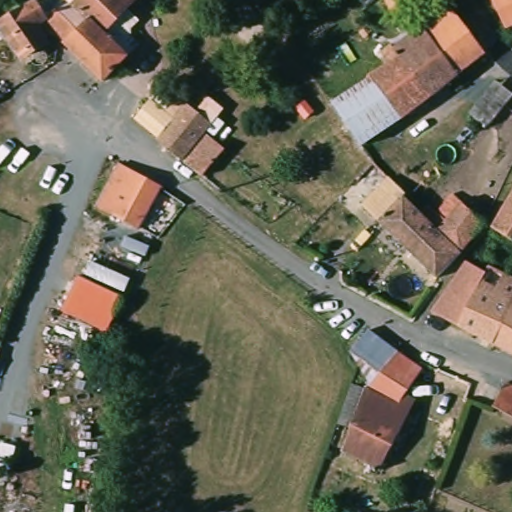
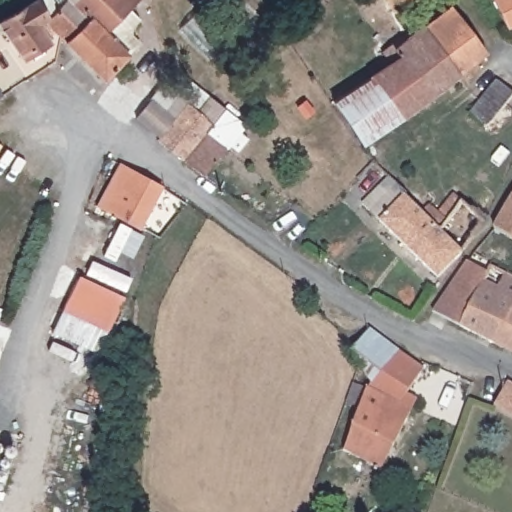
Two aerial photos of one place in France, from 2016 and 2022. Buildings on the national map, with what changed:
unchanged [(148,24),(140,31),(140,39),(148,48),(135,59),(108,85),(58,34),(54,30),(45,21),(49,17),(40,4),(47,0),(125,0),(134,10),(148,24)]
unchanged [(134,10),(125,0),(144,0),(134,10)]
unchanged [(379,0),(412,0),(395,15),(393,17),(378,1),(379,0)]
unchanged [(490,0),(512,0),(512,23),(505,27),(490,0)]
unchanged [(440,13),(451,3),(487,50),(459,72),(425,27),(424,25),(440,13)]
unchanged [(40,4),(49,17),(45,21),(54,30),(45,36),(54,48),(25,67),(0,28),(40,4)]
unchanged [(387,62),(379,52),(389,44),(393,50),(424,25),(425,27),(459,72),(404,115),(370,75),(387,62)]
unchanged [(370,75),(404,115),(361,148),(359,145),(336,114),(330,106),(370,75)]
unchanged [(1,100),(0,101),(0,99),(1,100)]
unchanged [(160,139),(136,121),(152,100),(176,119),(187,105),(213,126),(184,163),(168,150),(158,142),(160,139)]
unchanged [(228,152),(206,181),(187,166),(208,139),(209,137),(228,152)]
unchanged [(96,212),(121,166),(163,188),(138,235),(116,223),(96,212)]
unchanged [(356,206),(376,186),(395,204),(405,195),(421,212),(462,251),(434,279),(410,257),(356,206)]
unchanged [(512,189),(512,247),(486,231),(512,189)]
unchanged [(430,203),(438,210),(456,190),(483,223),(462,251),(421,212),(430,203)]
unchanged [(116,223),(138,235),(146,238),(116,293),(87,278),(110,234),(116,223)]
unchanged [(468,264),(471,266),(490,276),(461,329),(434,314),(468,264)]
unchanged [(512,276),(512,316),(494,346),(461,329),(490,276),(495,266),(512,276)]
unchanged [(87,278),(116,293),(129,299),(112,336),(90,325),(64,311),(83,276),(87,278)]
unchanged [(512,316),(512,355),(494,346),(512,316)]
unchanged [(376,363),(376,364),(357,392),(344,376),(334,364),(349,343),(376,363)]
unchanged [(329,457),(349,408),(357,392),(376,364),(401,383),(386,410),(400,417),(362,490),(328,472),(324,470),(329,461),(329,457)]
unchanged [(512,395),(512,417),(503,411),(512,395)]

